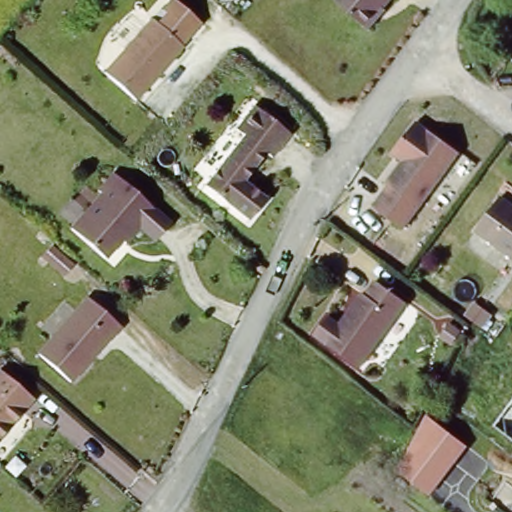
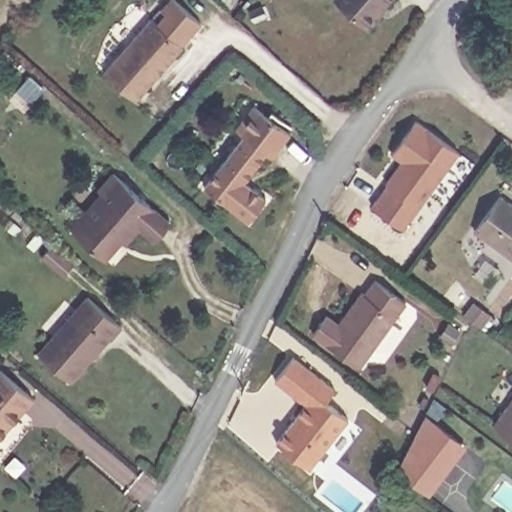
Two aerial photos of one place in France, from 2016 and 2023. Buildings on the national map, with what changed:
unchanged [(167,5),(157,15),(184,38),(135,93),(104,66),(161,0),(167,5)]
unchanged [(388,0),(370,24),(342,0),(388,0)]
unchanged [(272,152),(265,147),(244,176),(267,193),(249,215),(205,182),(244,130),(235,124),(244,113),(254,100),(257,102),(267,111),(272,106),(292,122),(289,127),(290,128),(272,152)]
unchanged [(462,150),(407,225),(375,202),(392,181),(390,179),(405,158),(395,150),(420,118),(462,150)]
unchanged [(97,189),(113,170),(172,221),(155,242),(137,226),(107,257),(71,225),(100,192),(97,189)]
unchanged [(474,231),(499,191),(512,201),(512,255),(474,231)]
unchanged [(312,330),(325,306),(337,315),(367,273),(410,299),(365,364),(312,330)]
unchanged [(88,296),(122,327),(74,381),(39,351),(88,296)]
new [(294,357),(335,389),(325,401),(350,419),(311,467),(277,441),(306,404),(275,380),(294,357)]
unchanged [(0,448),(0,376),(2,374),(17,387),(37,404),(0,448)]
unchanged [(494,426),(512,402),(512,439),(494,426)]
unchanged [(430,495),(399,471),(425,417),(466,447),(430,495)]

